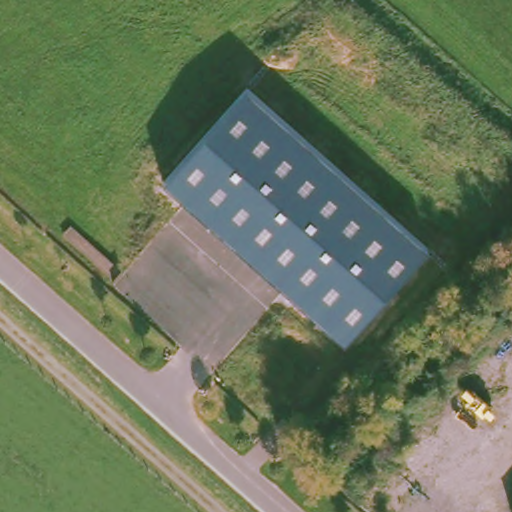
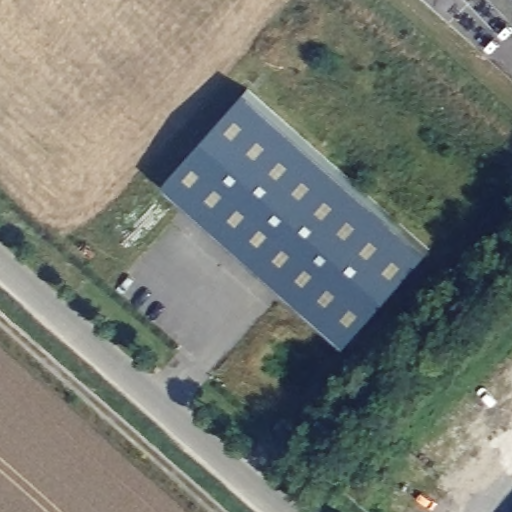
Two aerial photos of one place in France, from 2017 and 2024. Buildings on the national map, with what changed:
unchanged [(248,89),(430,249),(345,342),(165,182),(248,89)]
unchanged [(296,432),(288,440),(274,427),(281,419),(296,432)]

